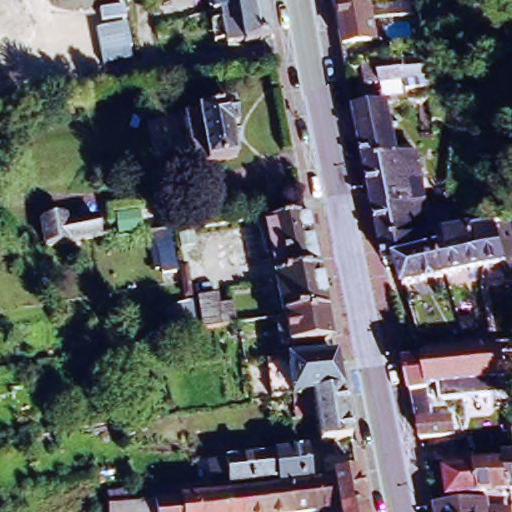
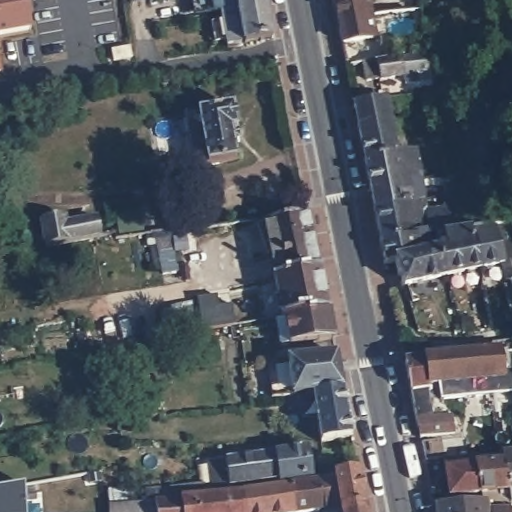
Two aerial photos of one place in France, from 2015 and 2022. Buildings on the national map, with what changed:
new [(0,33),(0,0),(19,0),(24,28),(0,33)]
unchanged [(211,19),(207,0),(263,0),(265,10),(217,19),(211,19)]
unchanged [(367,35),(338,41),(334,26),(329,0),(360,0),(366,29),(367,35)]
unchanged [(223,51),(217,19),(265,10),(271,43),(223,51)]
unchanged [(418,55),(423,82),(407,84),(406,75),(368,84),(365,65),(418,55)]
unchanged [(492,227),(502,263),(479,269),(473,244),(452,249),(458,275),(439,280),(433,283),(419,287),(399,293),(389,265),(382,267),(379,248),(350,110),(383,103),(388,130),(408,127),(423,210),(443,207),(450,229),(452,234),(469,231),(492,227)]
unchanged [(183,116),(234,108),(238,129),(229,130),(235,158),(191,165),(183,116)]
unchanged [(437,171),(444,169),(446,177),(439,178),(437,171)]
unchanged [(40,220),(62,217),(63,222),(94,216),(98,235),(45,244),(40,220)]
unchanged [(314,255),(318,273),(274,282),(271,268),(265,264),(257,227),(261,225),(306,216),(314,255)]
unchanged [(507,263),(496,225),(512,223),(512,278),(511,279),(509,274),(507,263)]
unchanged [(326,315),(283,323),(282,323),(274,282),(318,273),(326,315)]
unchanged [(204,332),(199,297),(218,294),(219,304),(228,303),(233,327),(204,332)]
unchanged [(161,320),(166,319),(164,308),(196,303),(200,333),(164,339),(161,320)]
unchanged [(283,323),(326,315),(331,346),(288,354),(282,323),(283,323)]
unchanged [(400,364),(420,360),(423,359),(423,357),(431,354),(431,359),(498,348),(499,354),(512,351),(512,374),(502,376),(463,383),(465,393),(437,398),(436,388),(426,389),(423,390),(424,395),(428,411),(430,420),(449,418),(452,434),(415,442),(409,414),(407,399),(403,379),(400,364)]
unchanged [(335,393),(291,401),(283,364),(329,356),(335,393)]
unchanged [(336,394),(344,438),(316,442),(315,442),(311,417),(291,420),(289,402),(291,401),(335,393),(336,394)]
unchanged [(476,496),(446,502),(439,468),(469,461),(471,470),(498,464),(496,456),(494,456),(492,411),(509,410),(511,453),(512,452),(512,498),(504,499),(502,492),(476,496)]
unchanged [(417,450),(464,441),(468,458),(467,458),(434,464),(420,467),(417,450)]
unchanged [(228,469),(309,454),(314,484),(283,489),(281,484),(233,493),(228,469)]
unchanged [(368,512),(342,512),(337,483),(361,479),(368,512)]
unchanged [(342,512),(298,512),(294,492),(337,483),(342,512)]
new [(26,512),(0,512),(0,488),(24,484),(26,512)]
unchanged [(298,512),(251,512),(249,499),(294,492),(298,512)]
unchanged [(107,501),(133,497),(135,512),(109,512),(107,501)]
unchanged [(210,502),(209,499),(224,497),(226,504),(249,499),(251,512),(145,512),(210,502)]
unchanged [(428,510),(477,502),(480,502),(482,502),(483,512),(428,512),(428,510)]
unchanged [(489,507),(502,505),(503,512),(490,512),(489,507)]

